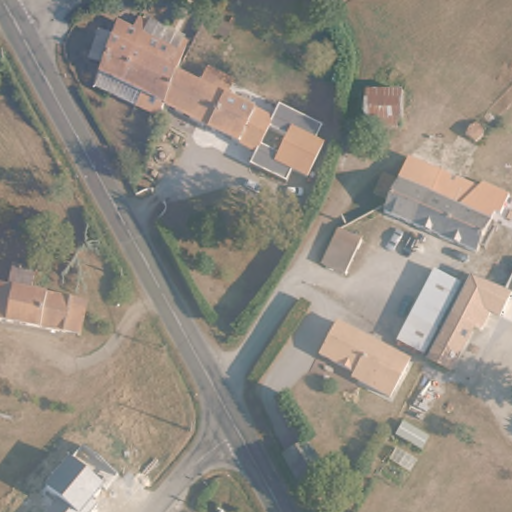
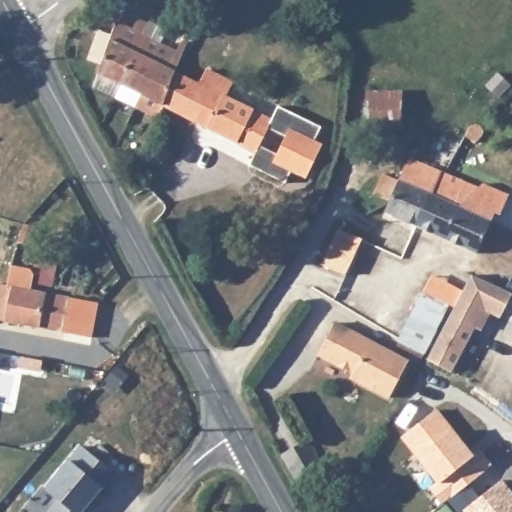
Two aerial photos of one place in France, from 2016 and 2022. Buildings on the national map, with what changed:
unchanged [(181,50),(175,64),(160,95),(94,60),(117,15),(181,50)]
unchanged [(204,63),(228,75),(221,88),(230,93),(239,98),(243,100),(226,131),(223,129),(160,95),(175,64),(197,76),(204,63)]
unchanged [(403,92),(402,125),(372,126),(371,120),(370,90),(403,92)]
unchanged [(266,112),(268,113),(273,104),(291,113),(264,163),(261,163),(256,162),(244,156),(250,144),(226,131),(243,100),(266,112)]
unchanged [(321,129),(314,143),(321,146),(305,182),(288,174),(284,184),(250,167),(256,162),(261,163),(264,163),(267,158),(274,145),(286,122),(287,120),(289,116),(291,114),(291,113),(321,129)]
unchanged [(478,130),(473,142),(466,137),(458,132),(463,124),(469,123),(474,125),(476,127),(478,130)]
unchanged [(512,194),(512,195),(504,213),(499,211),(495,219),(494,222),(486,243),(480,241),(477,248),(448,237),(420,226),(389,214),(395,201),(382,197),(389,175),(403,181),(411,160),(443,173),(484,188),(488,183),(512,194)]
unchanged [(335,234),(355,240),(344,275),(323,267),(335,234)]
unchanged [(85,341),(0,316),(0,302),(4,303),(10,283),(19,285),(24,268),(38,273),(34,287),(95,307),(85,341)]
unchanged [(430,271),(454,281),(434,323),(438,326),(426,352),(399,341),(430,271)]
unchanged [(471,273),(512,294),(512,296),(498,324),(481,315),(471,337),(467,335),(459,331),(452,328),(446,325),(471,273)]
unchanged [(459,331),(467,335),(451,369),(430,358),(446,325),(459,331)]
unchanged [(396,384),(389,399),(356,383),(358,379),(316,358),(332,326),(389,353),(407,362),(396,384)]
new [(430,487),(436,481),(401,437),(437,408),(473,453),(479,448),(492,464),(443,504),(430,487)]
demolished [(305,441),(323,471),(301,485),(283,453),(305,441)]
unchanged [(106,492),(100,486),(89,501),(93,509),(90,512),(46,512),(59,501),(45,490),(68,460),(78,443),(119,476),(106,492)]
new [(512,492),(512,512),(464,512),(463,510),(502,479),(512,492)]

